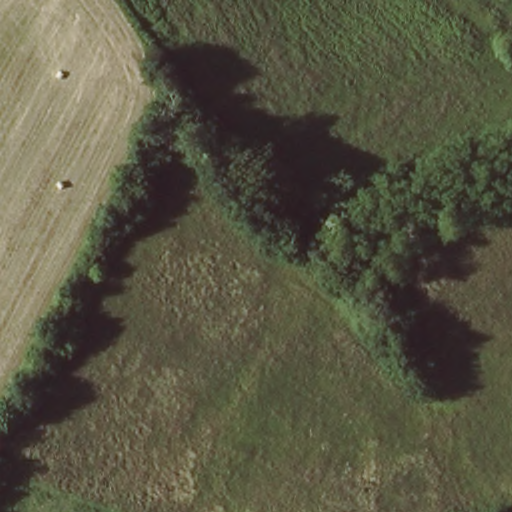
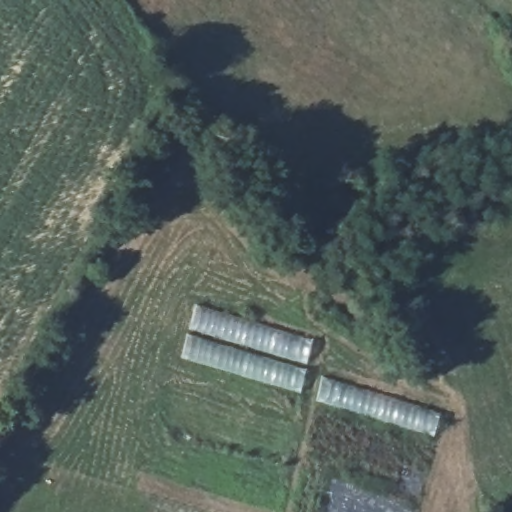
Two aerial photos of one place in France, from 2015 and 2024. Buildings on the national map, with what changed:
new [(183,358),(195,305),(313,340),(302,391),(183,358)]
new [(442,413),(436,436),(317,399),(322,376),(442,413)]

